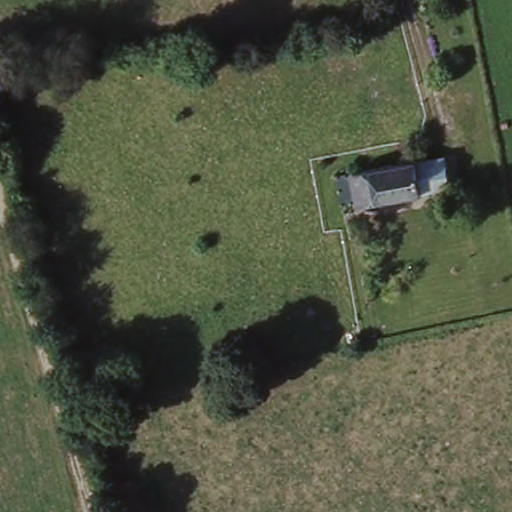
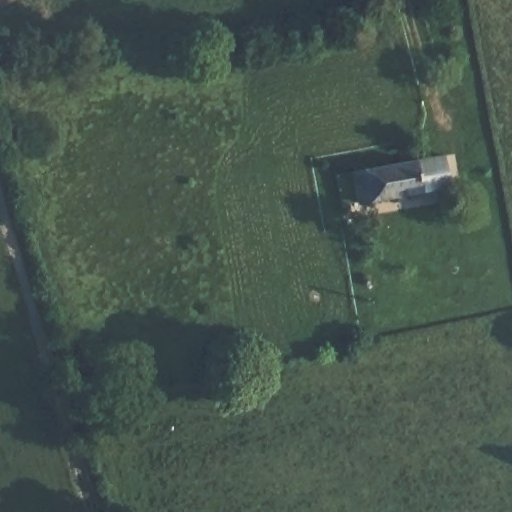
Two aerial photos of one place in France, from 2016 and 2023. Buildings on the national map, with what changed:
unchanged [(349,199),(346,171),(453,151),(460,182),(349,201),(349,199)]

